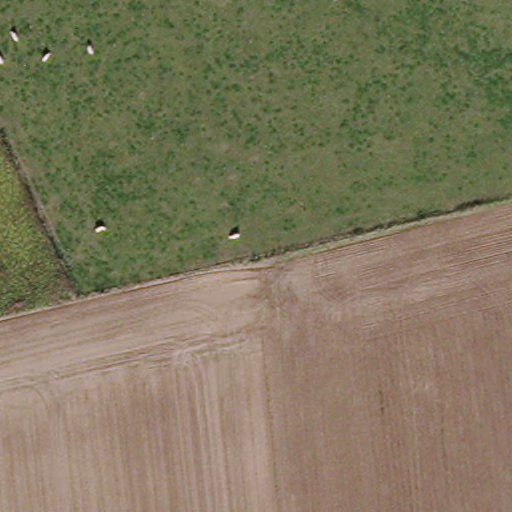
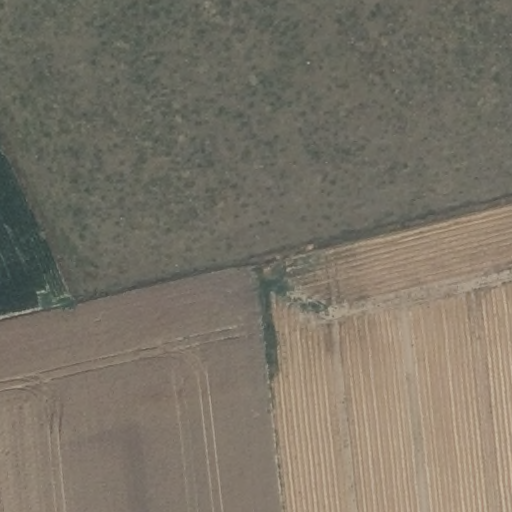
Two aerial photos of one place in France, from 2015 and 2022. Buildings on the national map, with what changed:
[]

